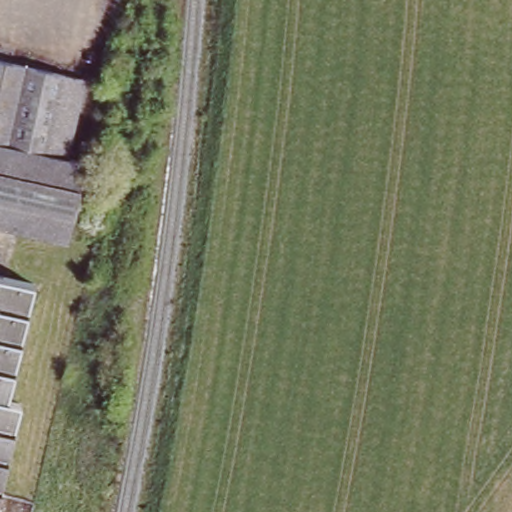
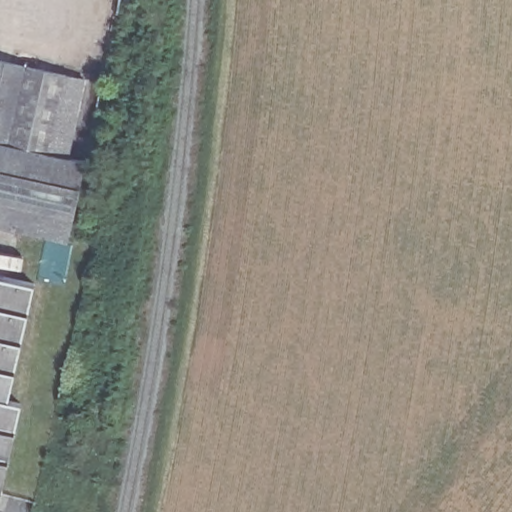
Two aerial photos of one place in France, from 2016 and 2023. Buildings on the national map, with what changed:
unchanged [(67,240),(0,225),(0,61),(102,84),(67,240)]
unchanged [(7,401),(20,404),(0,493),(0,276),(34,284),(7,401)]

